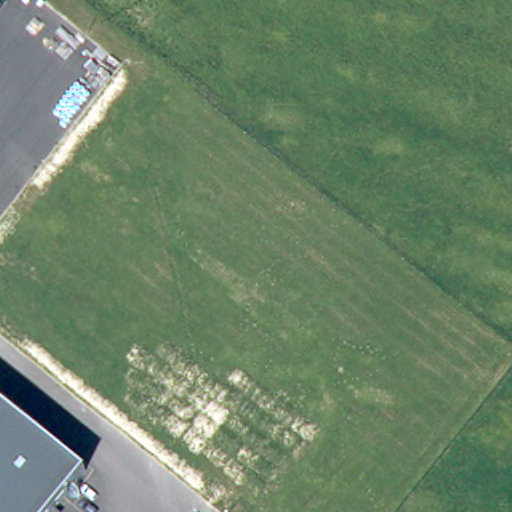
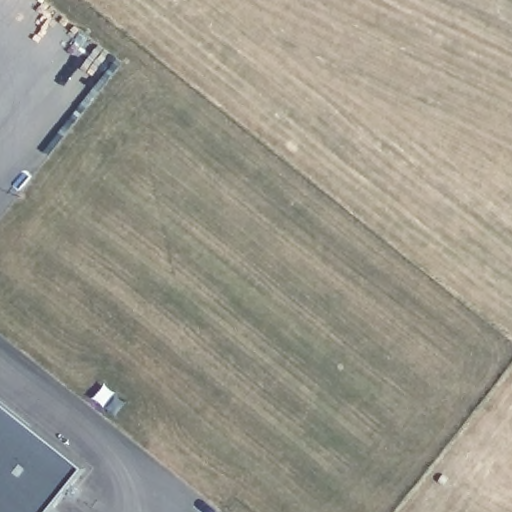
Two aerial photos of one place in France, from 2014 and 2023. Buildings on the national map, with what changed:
unchanged [(84,467),(48,512),(0,512),(0,400),(84,467)]

